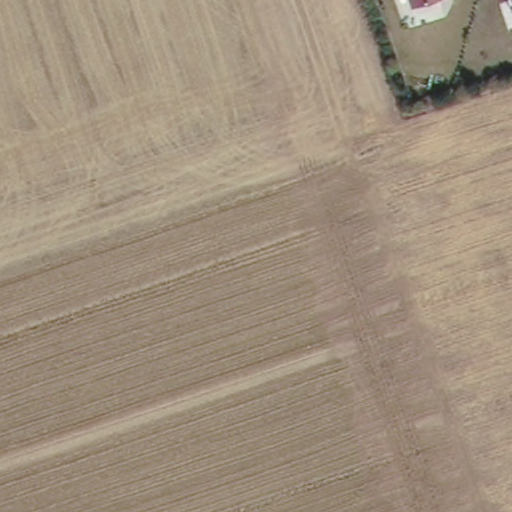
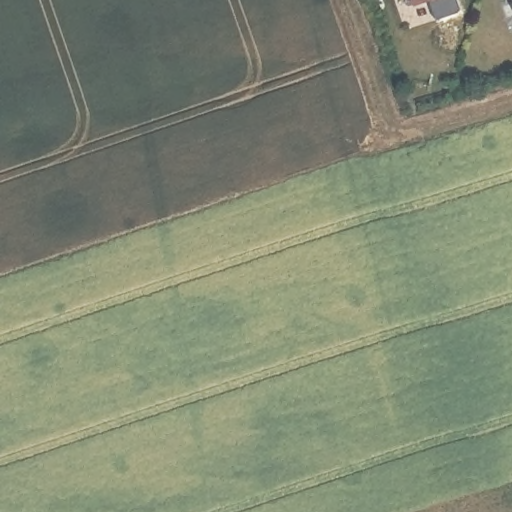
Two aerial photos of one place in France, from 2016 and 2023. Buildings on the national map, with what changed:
unchanged [(411,0),(425,0),(412,4),(411,0)]

